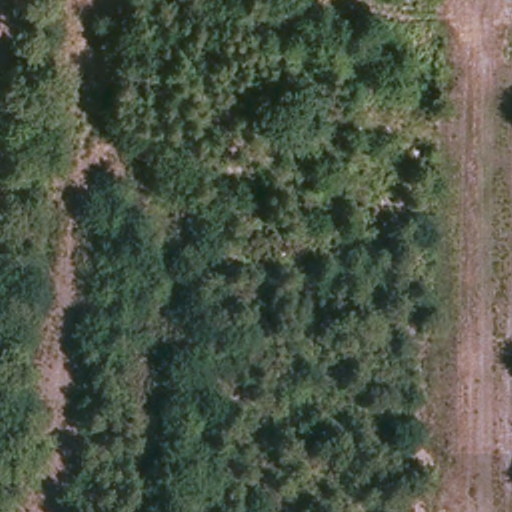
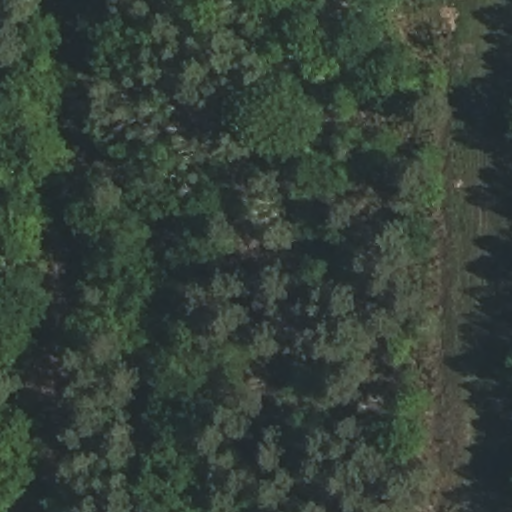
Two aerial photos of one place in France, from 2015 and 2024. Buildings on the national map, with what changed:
[]

